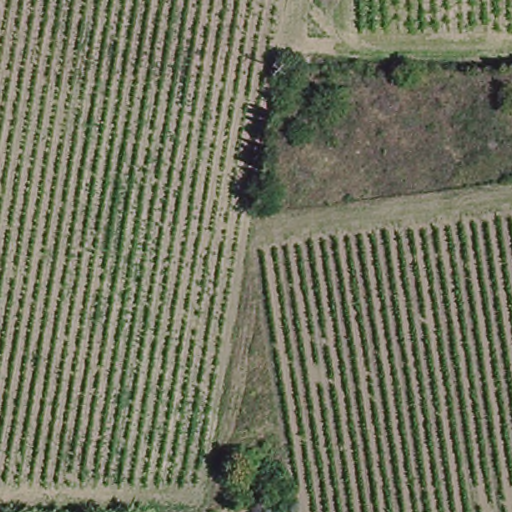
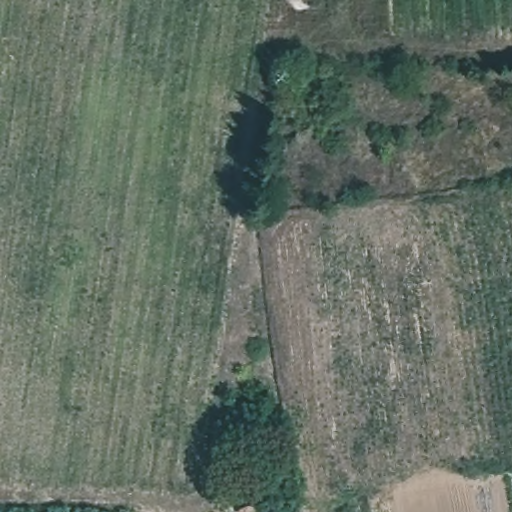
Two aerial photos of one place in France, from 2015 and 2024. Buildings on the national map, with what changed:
[]

